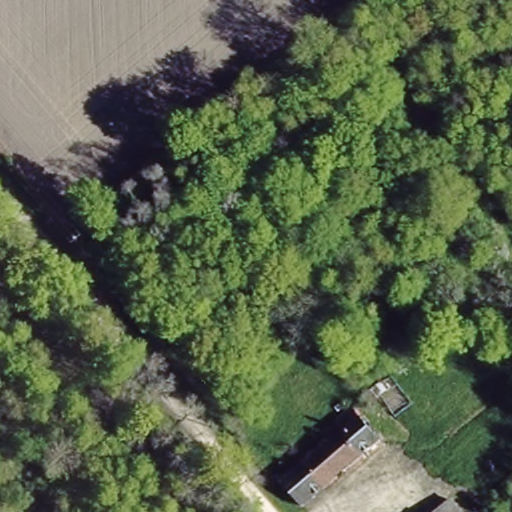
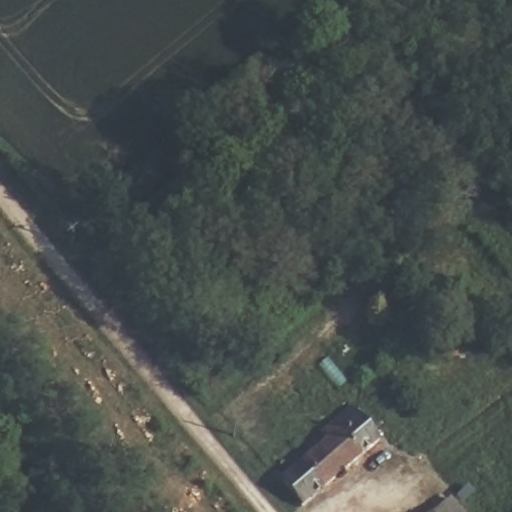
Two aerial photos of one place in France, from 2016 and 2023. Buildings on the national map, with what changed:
unchanged [(280,480),(326,444),(317,430),(353,406),(381,447),(307,511),(280,480)]
unchanged [(426,512),(436,503),(444,512),(426,512)]

